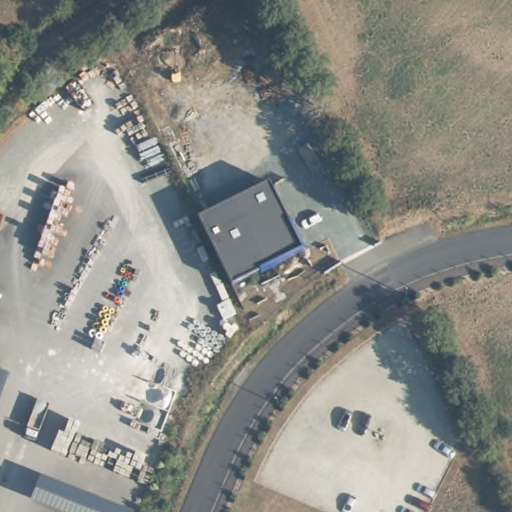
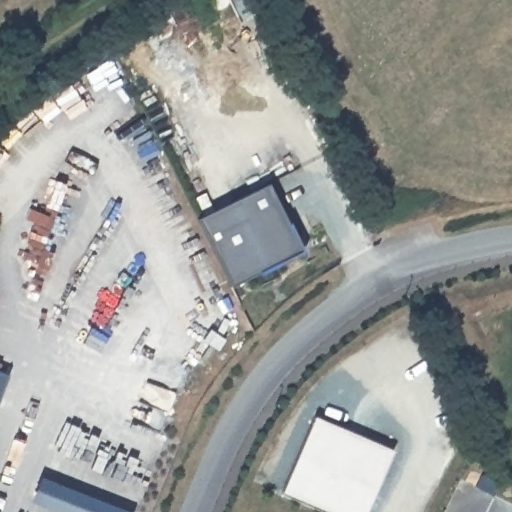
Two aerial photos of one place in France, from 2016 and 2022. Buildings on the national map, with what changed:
unchanged [(230,285),(198,218),(269,183),(299,249),(230,285)]
unchanged [(7,374),(0,395),(0,372),(7,374)]
new [(316,414),(395,448),(368,512),(324,512),(280,493),(316,414)]

